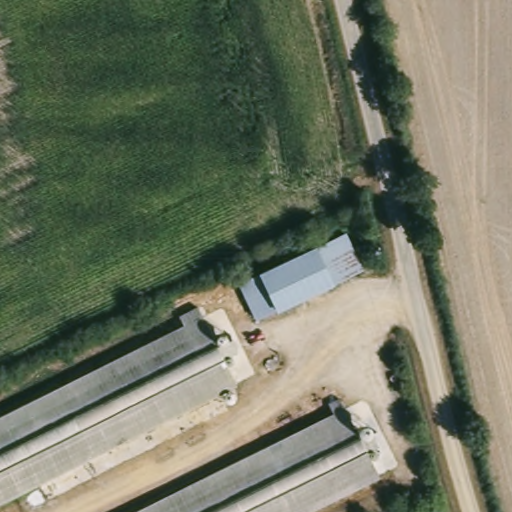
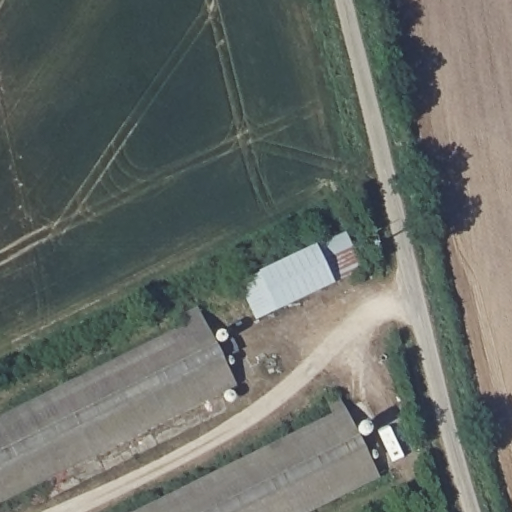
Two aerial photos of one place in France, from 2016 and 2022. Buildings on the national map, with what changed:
unchanged [(252,322),(233,283),(341,230),(360,268),(252,322)]
unchanged [(209,315),(242,382),(0,502),(0,418),(209,315)]
unchanged [(130,512),(334,411),(329,402),(344,394),(383,476),(311,512),(130,512)]

